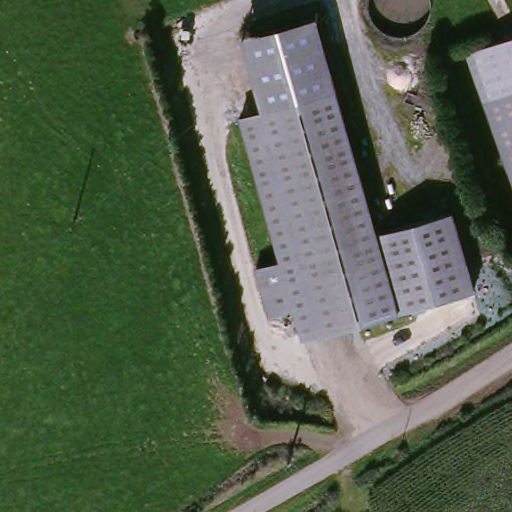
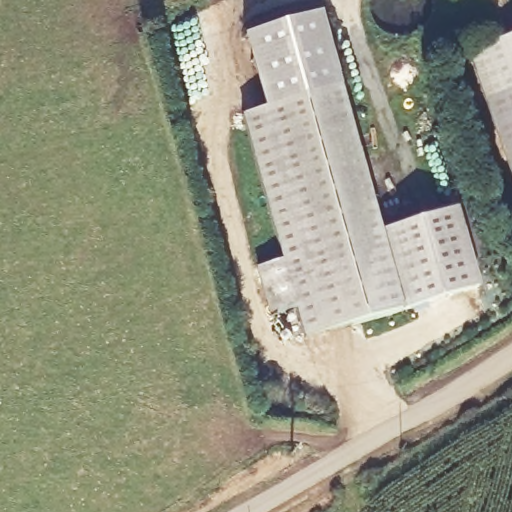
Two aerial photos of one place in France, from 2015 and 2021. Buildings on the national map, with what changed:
unchanged [(247,33),(317,17),(339,91),(269,108),(247,33)]
unchanged [(467,52),(512,36),(512,91),(486,101),(467,52)]
unchanged [(300,340),(293,310),(269,319),(253,267),(280,262),(240,115),(269,108),(339,91),(379,229),(456,208),(475,291),(300,340)]
unchanged [(512,178),(486,101),(512,91),(512,178)]

